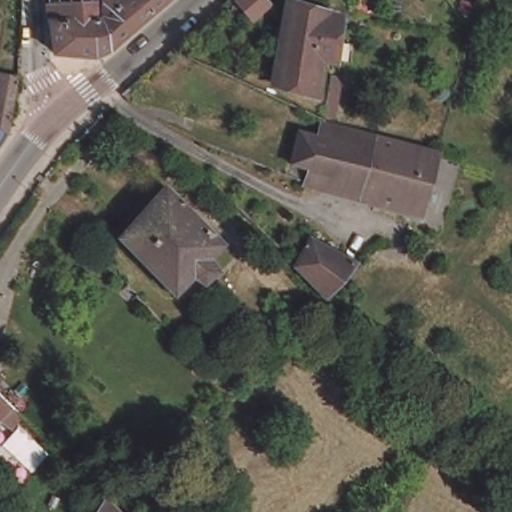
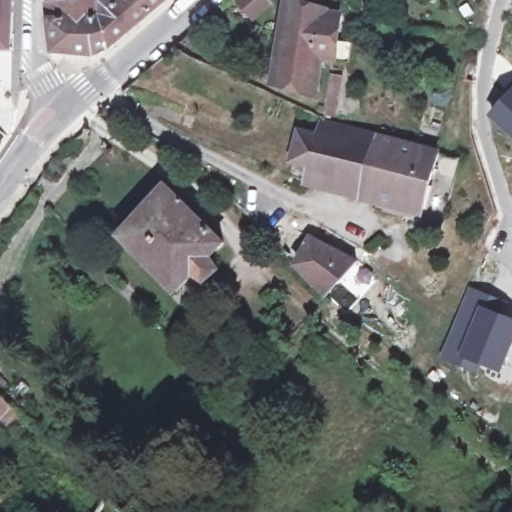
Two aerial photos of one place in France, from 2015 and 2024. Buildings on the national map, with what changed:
new [(0,51),(0,0),(18,0),(15,51),(0,51)]
unchanged [(52,0),(113,0),(113,42),(98,51),(79,49),(57,46),(53,19),(53,18),(52,0)]
unchanged [(113,42),(113,0),(159,0),(139,19),(113,42)]
unchanged [(326,58),(311,56),(307,95),(266,90),(281,0),(284,0),(314,6),(313,10),(331,14),(328,40),(342,41),(340,59),(326,58)]
unchanged [(335,71),(346,73),(337,114),(326,111),(335,71)]
new [(488,116),(512,83),(512,137),(488,116)]
unchanged [(420,216),(304,184),(308,169),(289,164),(299,128),(318,133),(322,118),(340,123),(439,151),(420,216)]
unchanged [(217,239),(207,252),(217,264),(205,278),(190,271),(173,291),(113,239),(157,188),(217,239)]
unchanged [(319,233),(350,261),(335,279),(316,290),(289,264),(319,233)]
new [(468,286),(507,302),(503,313),(512,317),(512,344),(500,373),(482,365),(477,374),(438,358),(468,286)]
unchanged [(257,355),(263,348),(274,357),(267,364),(257,355)]
unchanged [(0,422),(0,399),(12,411),(2,424),(0,422)]
unchanged [(70,509),(92,474),(96,479),(102,486),(111,497),(128,512),(75,512),(70,509)]

